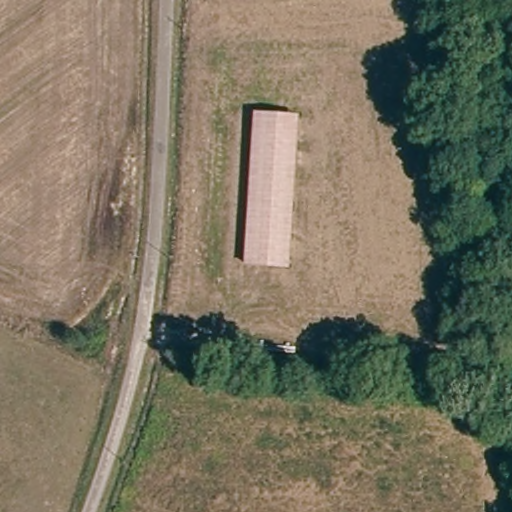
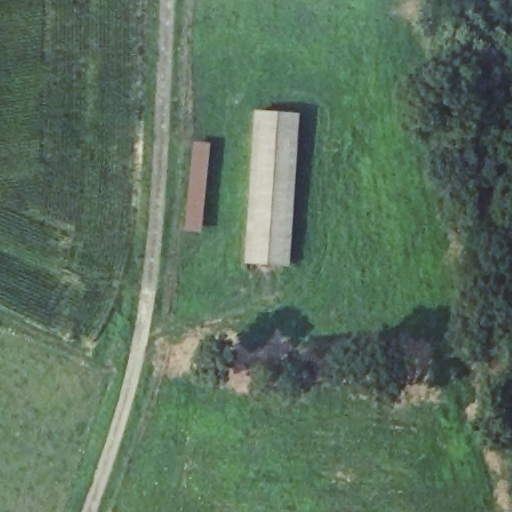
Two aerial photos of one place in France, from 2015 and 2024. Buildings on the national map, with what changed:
unchanged [(292,270),(246,265),(256,115),(301,117),(292,270)]
new [(189,193),(187,192),(193,167),(189,166),(196,141),(212,145),(207,162),(214,165),(199,222),(203,223),(200,234),(180,230),(189,193)]

